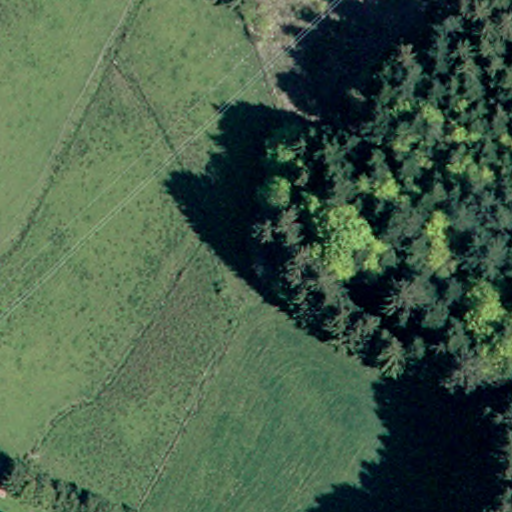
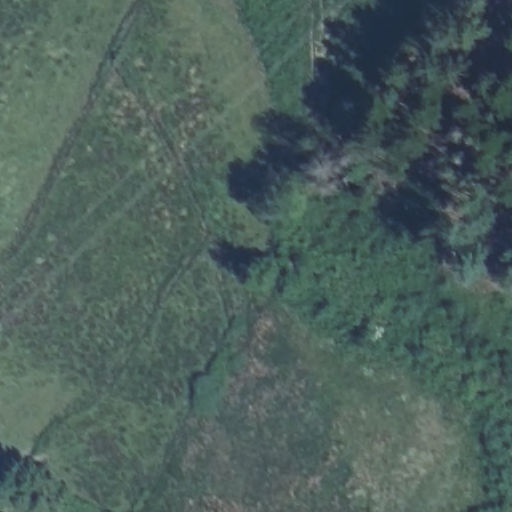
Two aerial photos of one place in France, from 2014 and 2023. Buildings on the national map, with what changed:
unchanged [(2,494),(0,493),(0,470),(6,471),(2,494)]

